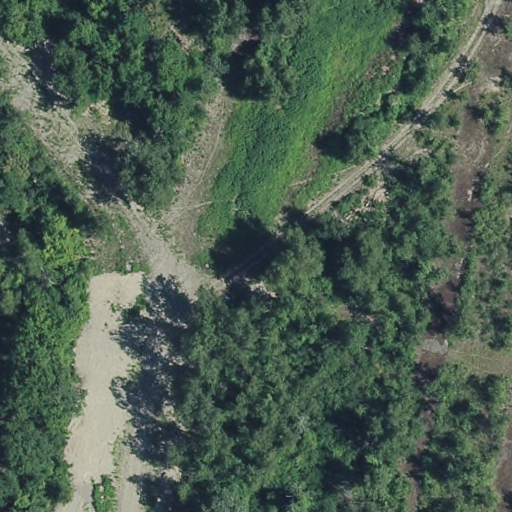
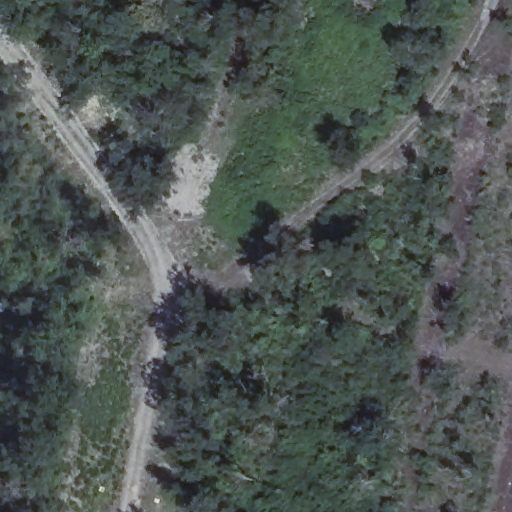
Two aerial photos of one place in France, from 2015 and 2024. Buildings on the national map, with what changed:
unchanged [(0,306),(0,294),(3,295),(1,307),(0,306)]

